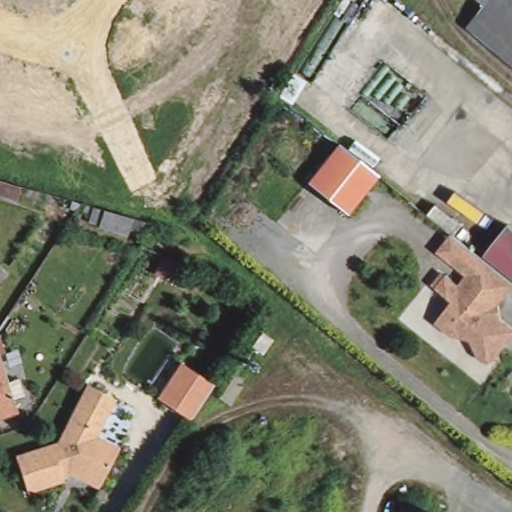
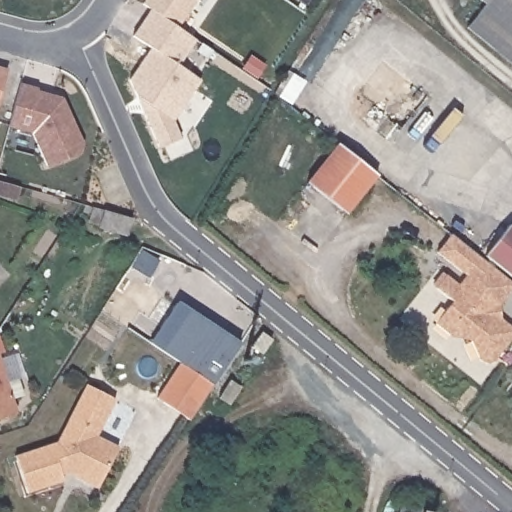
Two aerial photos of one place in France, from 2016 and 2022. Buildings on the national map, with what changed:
new [(145,0),(196,0),(177,28),(141,4),(145,0)]
unchanged [(512,61),(469,26),(477,16),(464,4),(468,0),(512,0),(512,61)]
new [(130,80),(149,47),(132,35),(151,10),(177,28),(196,41),(180,66),(201,80),(173,120),(181,139),(159,148),(130,80)]
new [(6,69),(0,91),(0,67),(6,69)]
new [(37,88),(36,91),(61,98),(82,145),(79,154),(46,168),(31,133),(7,127),(19,83),(37,88)]
unchanged [(386,172),(351,216),(304,182),(337,144),(386,172)]
unchanged [(24,188),(20,201),(0,195),(0,181),(24,188)]
unchanged [(114,213),(136,219),(130,237),(102,229),(104,220),(107,211),(114,213)]
unchanged [(512,229),(512,278),(479,251),(502,221),(512,229)]
unchanged [(461,271),(434,247),(450,228),(479,251),(512,278),(512,291),(495,313),(512,328),(512,329),(487,365),(471,353),(471,341),(463,334),(448,336),(430,323),(449,296),(427,281),(439,267),(455,279),(461,271)]
unchanged [(164,257),(185,265),(180,279),(159,271),(164,257)]
unchanged [(252,346),(262,332),(273,339),(262,353),(252,346)]
unchanged [(5,353),(0,354),(0,336),(5,353)]
unchanged [(214,383),(186,425),(154,401),(181,359),(214,383)]
unchanged [(7,384),(18,381),(22,397),(12,400),(15,412),(0,417),(0,363),(7,384)]
unchanged [(219,396),(231,379),(241,386),(230,403),(219,396)]
unchanged [(110,461),(96,488),(67,472),(61,474),(63,481),(26,492),(15,456),(56,442),(86,383),(114,396),(95,433),(118,445),(110,461)]
unchanged [(420,512),(396,512),(397,507),(420,512)]

